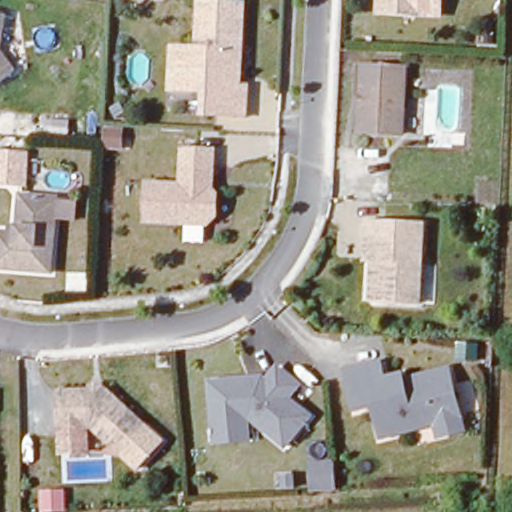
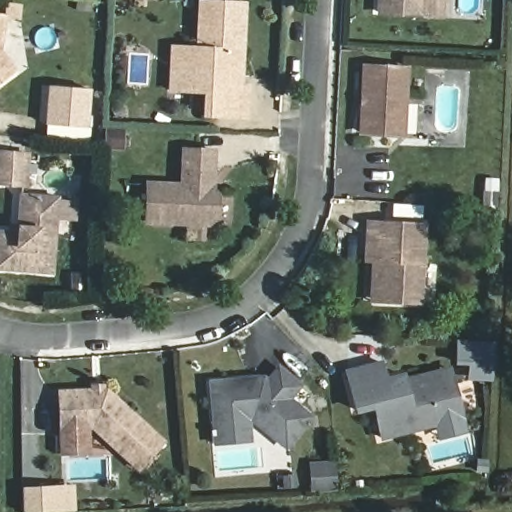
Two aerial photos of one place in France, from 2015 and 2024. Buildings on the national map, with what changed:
unchanged [(172,46),(198,47),(201,0),(245,2),(243,45),(240,85),(247,86),(245,117),(204,115),(205,91),(187,91),(170,90),(172,46)]
unchanged [(416,12),(375,10),(376,0),(417,0),(416,12)]
unchanged [(0,28),(0,14),(2,14),(0,28)]
unchanged [(0,80),(0,55),(12,71),(0,80)]
unchanged [(406,66),(402,132),(361,130),(365,64),(406,66)]
new [(49,85),(91,89),(87,129),(45,125),(49,85)]
unchanged [(25,181),(0,179),(0,146),(27,148),(25,181)]
unchanged [(210,147),(209,164),(205,164),(205,184),(211,192),(211,213),(202,221),(141,218),(143,181),(179,182),(180,146),(210,147)]
unchanged [(57,197),(75,198),(73,216),(55,214),(51,268),(0,264),(0,227),(10,228),(10,220),(18,220),(20,190),(57,193),(57,197)]
unchanged [(371,259),(363,259),(365,239),(366,219),(422,222),(417,302),(376,300),(368,300),(371,259)]
unchanged [(457,336),(475,339),(472,355),(455,352),(457,336)]
unchanged [(436,433),(434,419),(377,433),(370,401),(353,405),(344,366),(378,358),(382,374),(399,370),(400,376),(445,365),(446,370),(456,410),(460,428),(436,433)]
unchanged [(296,383),(285,397),(307,416),(282,445),(248,416),(211,419),(209,380),(246,377),(268,375),(275,366),(296,383)]
unchanged [(105,387),(144,424),(119,451),(90,425),(57,425),(57,388),(105,387)]
unchanged [(320,500),(300,501),(300,476),(320,475),(320,500)]
unchanged [(55,512),(30,512),(30,501),(54,500),(55,512)]

